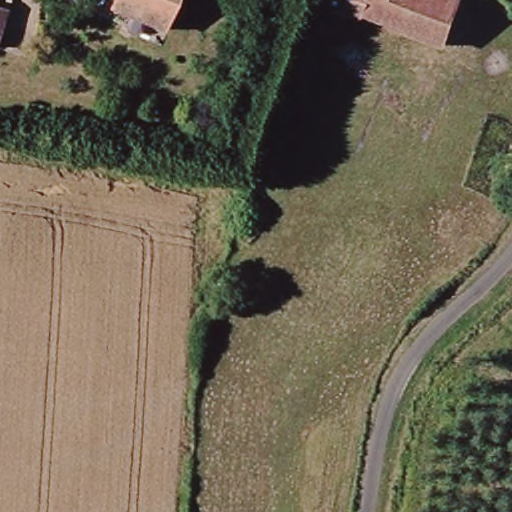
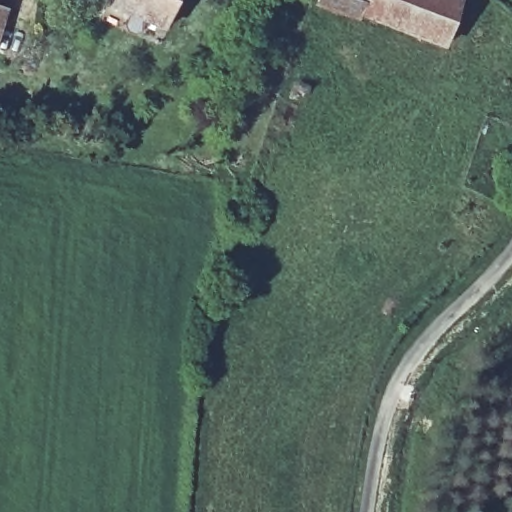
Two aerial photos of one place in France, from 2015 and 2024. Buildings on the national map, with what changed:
unchanged [(113,6),(115,0),(175,0),(165,26),(113,6)]
unchanged [(365,14),(362,20),(317,0),(459,0),(441,46),(365,14)]
unchanged [(9,51),(0,48),(0,10),(20,17),(9,51)]
unchanged [(308,84),(291,116),(281,111),(299,79),(308,84)]

